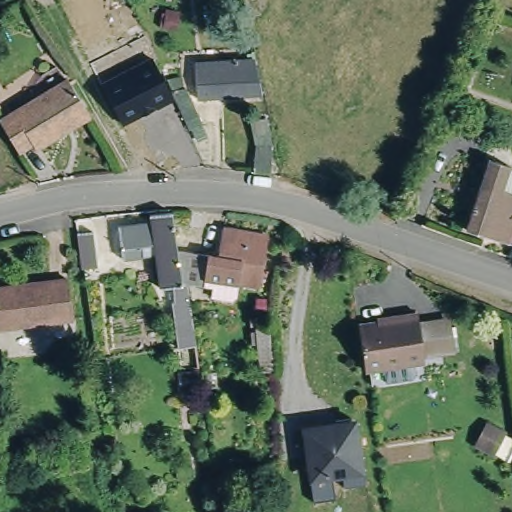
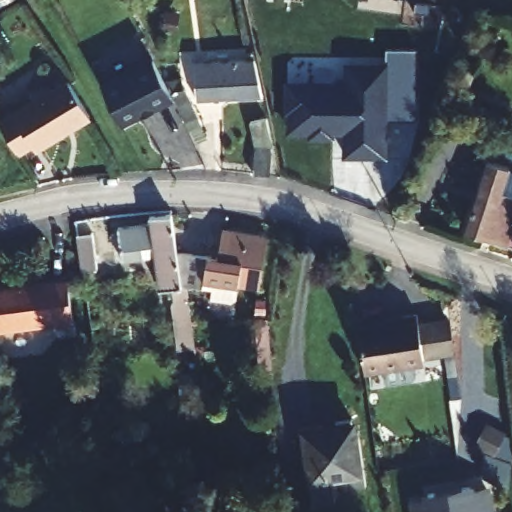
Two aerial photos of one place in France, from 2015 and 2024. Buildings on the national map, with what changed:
unchanged [(180,11),(177,31),(162,30),(165,9),(180,11)]
unchanged [(168,113),(170,119),(136,135),(120,100),(154,85),(135,42),(145,37),(167,89),(166,93),(173,110),(168,113)]
unchanged [(196,100),(194,64),(246,61),(246,55),(253,55),(261,96),(196,100)]
new [(343,75),(345,57),(389,56),(388,155),(343,155),(343,135),(310,134),(310,129),(286,128),(288,71),(343,75)]
unchanged [(196,140),(187,120),(186,120),(168,80),(181,77),(183,89),(185,87),(207,135),(196,140)]
unchanged [(34,149),(31,144),(16,152),(0,124),(0,120),(67,80),(89,115),(34,149)]
unchanged [(270,175),(253,173),(255,146),(250,121),(267,117),(272,149),(270,175)]
unchanged [(489,159),(510,165),(508,169),(512,170),(512,245),(465,230),(489,159)]
unchanged [(180,372),(177,343),(172,302),(173,301),(172,287),(160,288),(155,257),(123,261),(118,228),(150,223),(149,215),(171,212),(173,230),(176,250),(178,259),(180,277),(181,283),(182,285),(185,285),(191,320),(195,341),(198,369),(180,372)]
unchanged [(230,301),(210,298),(211,288),(203,287),(181,283),(180,277),(178,259),(176,250),(207,255),(217,257),(222,230),(267,236),(260,287),(238,283),(238,285),(236,296),(230,301)]
unchanged [(76,234),(92,232),(97,268),(81,270),(76,234)]
unchanged [(67,278),(73,320),(0,330),(0,287),(67,278)]
unchanged [(371,381),(370,365),(365,366),(358,322),(401,316),(400,311),(417,310),(420,323),(449,319),(453,348),(423,353),(425,358),(400,361),(402,377),(371,381)]
unchanged [(270,318),(273,372),(259,373),(255,320),(270,318)]
unchanged [(323,423),(324,428),(336,426),(336,421),(352,419),(354,431),(358,431),(366,485),(344,488),(342,473),(332,475),(335,500),(313,503),(306,456),(301,457),(297,427),(323,423)]
unchanged [(490,426),(505,434),(493,455),(479,447),(490,426)]
new [(491,485),(495,512),(413,512),(410,495),(491,485)]

